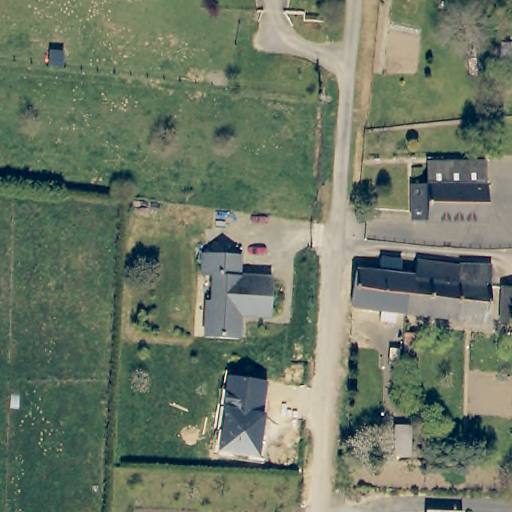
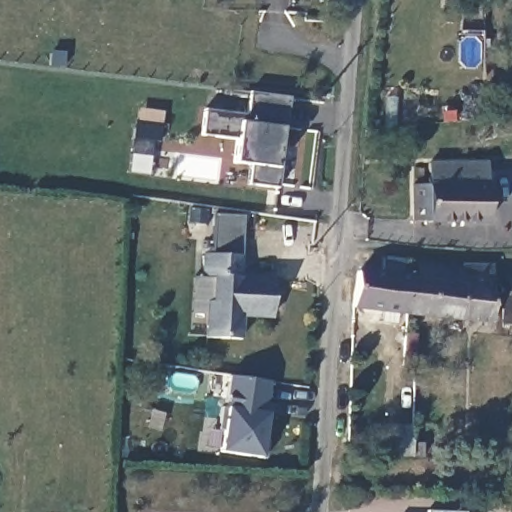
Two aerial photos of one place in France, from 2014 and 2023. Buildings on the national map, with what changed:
new [(244,114),(248,93),(285,99),(279,129),(273,170),(273,188),(245,184),(247,171),(228,168),(232,162),(235,139),(200,136),(204,109),(244,114)]
unchanged [(482,218),(404,218),(405,181),(422,181),(423,161),(481,159),(482,218)]
unchanged [(211,254),(213,215),(240,217),(237,256),(211,254)]
unchanged [(237,256),(235,278),(268,280),(266,318),(236,316),(234,341),(201,338),(204,301),(209,302),(210,276),(199,275),(200,253),(237,256)]
unchanged [(411,264),(454,267),(485,266),(484,325),(429,318),(402,314),(348,308),(353,270),(377,259),(399,263),(397,275),(404,276),(411,277),(411,264)]
unchanged [(512,327),(504,326),(505,290),(512,290),(512,327)]
unchanged [(415,337),(412,369),(402,368),(406,336),(415,337)]
unchanged [(264,414),(259,457),(218,453),(223,409),(228,378),(267,383),(264,414)]
unchanged [(410,426),(409,461),(404,460),(389,460),(390,425),(410,426)]
unchanged [(420,445),(420,461),(410,461),(410,444),(420,445)]
unchanged [(428,509),(459,509),(459,512),(422,512),(422,508),(428,509)]

